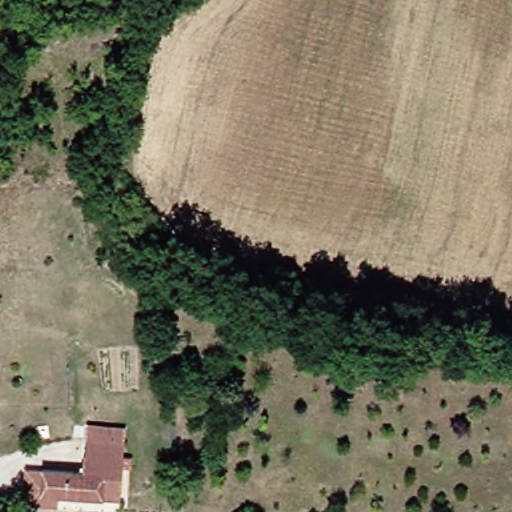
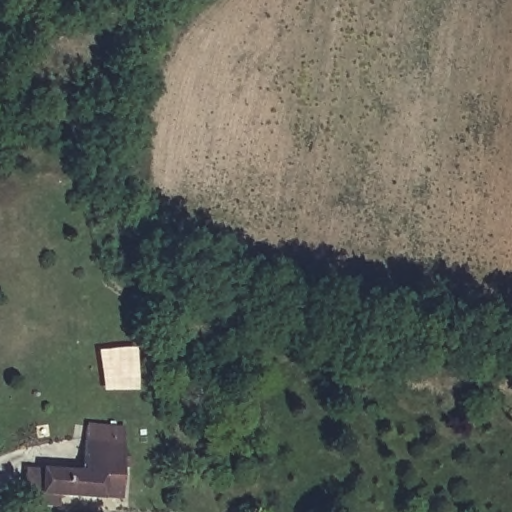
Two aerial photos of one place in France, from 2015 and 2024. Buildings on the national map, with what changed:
new [(98,350),(135,347),(137,390),(103,390),(98,350)]
unchanged [(118,460),(126,461),(125,472),(117,471),(115,504),(35,498),(36,473),(77,476),(82,430),(120,434),(118,460)]

